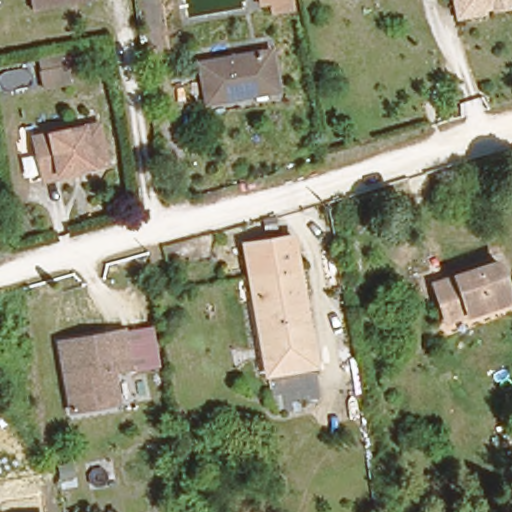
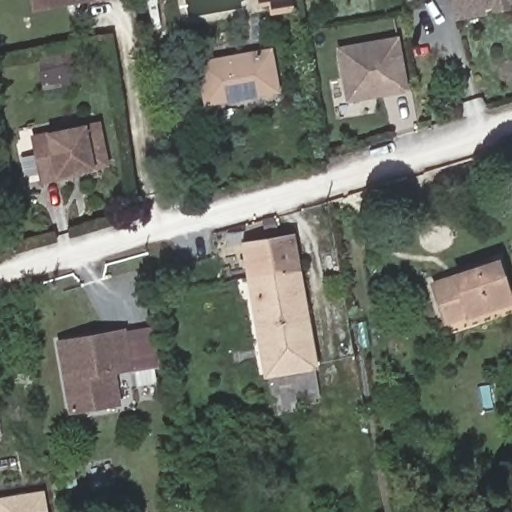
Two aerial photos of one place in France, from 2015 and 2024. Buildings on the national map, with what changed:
unchanged [(36,4),(35,0),(59,0),(36,4)]
unchanged [(265,0),(294,0),(296,10),(278,14),(276,3),(266,5),(265,0)]
unchanged [(482,12),(483,16),(454,20),(451,0),(512,0),(512,2),(505,3),(506,5),(506,9),(482,12)]
new [(409,90),(346,102),(335,46),(398,35),(409,90)]
unchanged [(238,99),(206,104),(198,58),(271,47),(277,82),(278,92),(238,99)]
unchanged [(97,120),(104,160),(58,167),(59,171),(41,174),(35,130),(97,120)]
unchanged [(266,383),(264,372),(262,362),(244,235),(291,227),(311,355),(302,356),(303,365),(305,377),(266,383)]
unchanged [(435,268),(500,250),(512,289),(512,304),(451,321),(447,308),(435,268)]
unchanged [(123,328),(129,365),(112,367),(117,396),(79,401),(70,402),(60,337),(67,336),(123,328)]
new [(0,512),(0,496),(44,490),(48,512),(0,512)]

